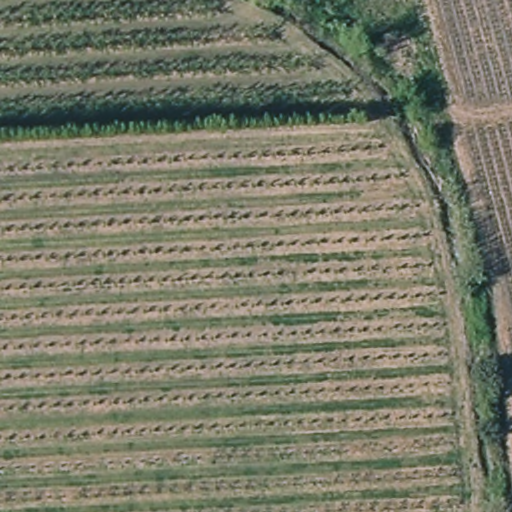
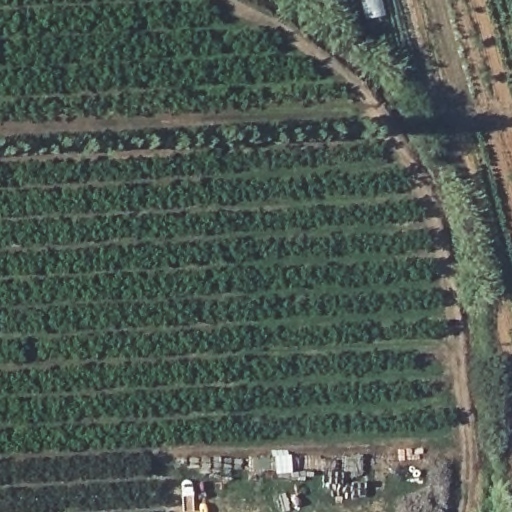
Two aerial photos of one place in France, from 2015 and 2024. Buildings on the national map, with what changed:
[]

